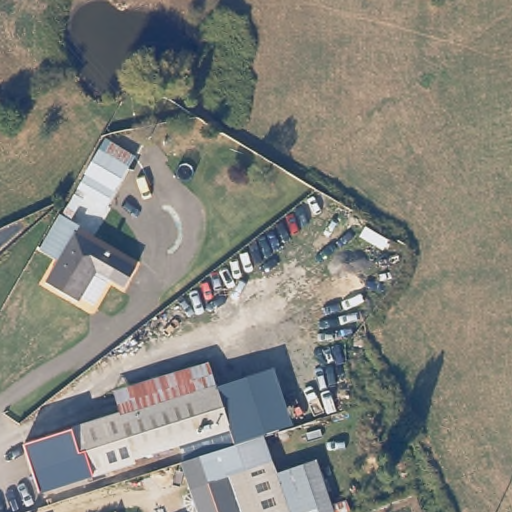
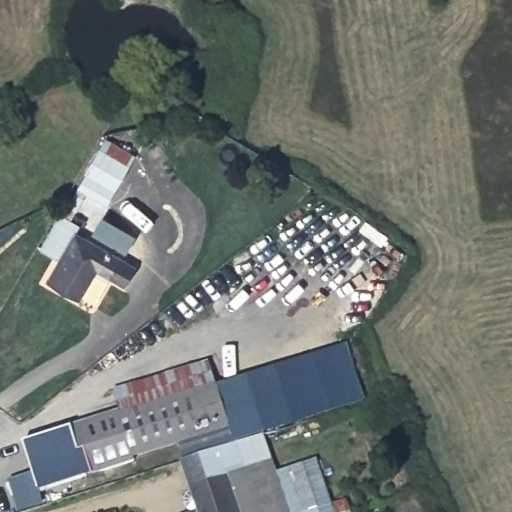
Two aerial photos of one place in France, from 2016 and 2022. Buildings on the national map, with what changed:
unchanged [(134,160),(107,206),(87,195),(77,190),(104,143),(134,160)]
unchanged [(87,195),(75,215),(70,213),(65,221),(79,229),(75,235),(135,269),(125,286),(110,280),(94,307),(82,300),(79,304),(47,285),(60,261),(42,251),(77,190),(87,195)]
new [(291,425),(274,370),(273,367),(347,343),(366,401),(291,425)]
unchanged [(114,391),(209,362),(217,385),(274,370),(291,425),(263,433),(271,460),(191,487),(181,461),(189,460),(184,445),(231,431),(217,388),(121,419),(120,415),(114,391)]
unchanged [(231,431),(134,461),(135,465),(40,494),(24,446),(120,415),(121,419),(217,388),(231,431)]
unchanged [(275,470),(289,512),(200,512),(191,487),(271,460),(275,470)]
unchanged [(275,470),(302,462),(322,512),(289,512),(275,470)]

